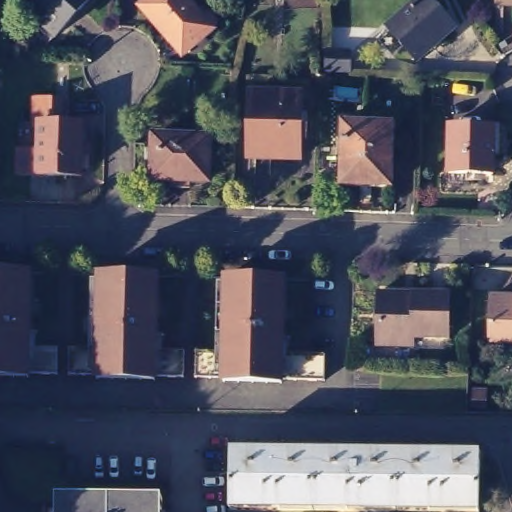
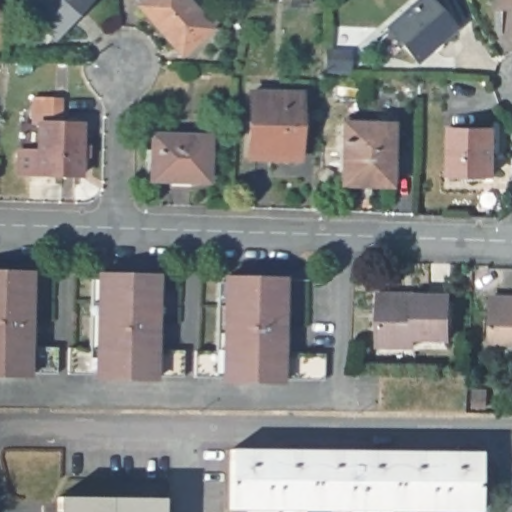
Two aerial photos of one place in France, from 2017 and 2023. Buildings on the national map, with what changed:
unchanged [(44,20),(39,25),(32,19),(36,14),(23,0),(87,0),(57,33),(44,20)]
unchanged [(137,7),(139,5),(134,0),(182,0),(200,19),(206,14),(215,23),(207,29),(209,30),(192,44),(180,55),(172,48),(137,7)]
unchanged [(415,0),(431,0),(453,25),(417,57),(388,24),(415,0)]
unchanged [(327,70),(327,52),(350,53),(350,71),(327,70)]
unchanged [(249,154),(250,88),(302,89),(302,107),(310,108),(309,119),(302,119),(301,155),(249,154)]
unchanged [(85,178),(44,177),(45,125),(39,125),(40,100),(67,100),(67,125),(87,126),(87,148),(94,148),(94,157),(87,157),(85,178)]
unchanged [(347,119),(394,119),(392,188),(340,186),(342,124),(347,124),(347,119)]
unchanged [(449,169),(450,122),(493,123),(492,169),(449,169)]
unchanged [(215,132),(213,178),(158,177),(159,172),(151,171),(152,148),(159,147),(160,131),(215,132)]
unchanged [(0,372),(0,268),(31,269),(30,328),(37,328),(37,343),(58,344),(57,370),(29,369),(29,373),(0,372)]
unchanged [(97,374),(98,371),(69,371),(70,344),(99,344),(100,270),(158,272),(157,330),(165,330),(165,346),(185,347),(185,373),(156,373),(156,376),(97,374)]
unchanged [(225,378),(224,374),(195,374),(196,347),(225,348),(227,274),(284,275),(282,334),(290,334),(290,349),(325,350),(325,377),(282,376),(282,379),(225,378)]
unchanged [(449,334),(414,332),(413,342),(377,342),(378,297),(378,289),(413,289),(450,289),(449,334)]
unchanged [(492,292),(512,292),(512,338),(490,337),(492,292)]
unchanged [(474,407),(474,394),(474,389),(486,389),(487,394),(487,407),(474,407)]
unchanged [(382,447),(447,448),(464,448),(481,449),(480,508),(230,505),(231,446),(281,446),(299,446),(364,447),(382,447)]
unchanged [(63,498),(168,499),(168,512),(63,512),(63,498)]

